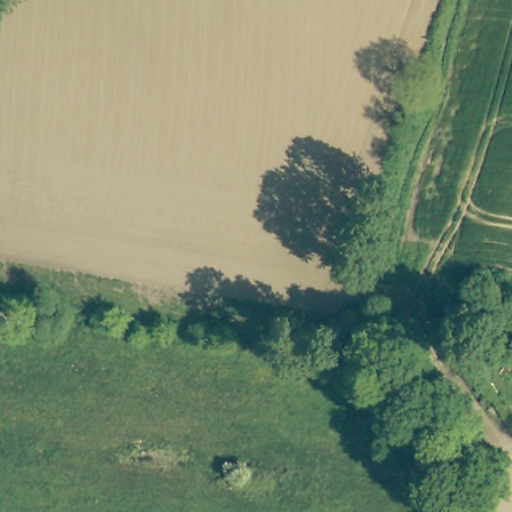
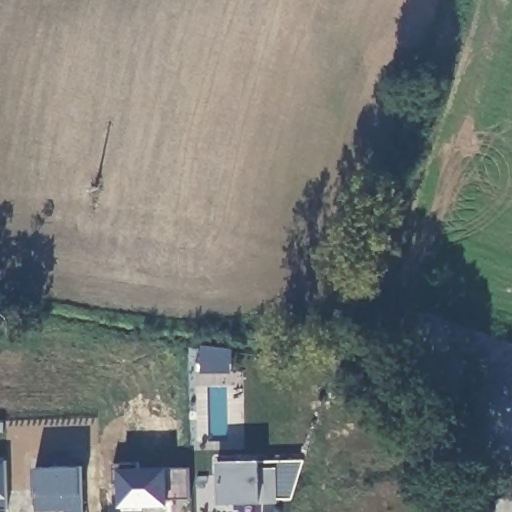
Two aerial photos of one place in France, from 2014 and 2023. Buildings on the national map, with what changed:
new [(204,349),(234,351),(234,367),(234,375),(204,376),(204,367),(204,349)]
new [(257,463),(258,471),(275,471),(276,505),(215,506),(213,464),(257,463)]
new [(6,464),(7,512),(0,512),(0,464),(6,464)]
new [(169,503),(169,509),(145,509),(145,512),(122,512),(121,487),(114,487),(113,467),(139,467),(140,473),(190,472),(191,503),(169,503)]
new [(83,512),(35,512),(35,472),(82,470),(83,512)]

